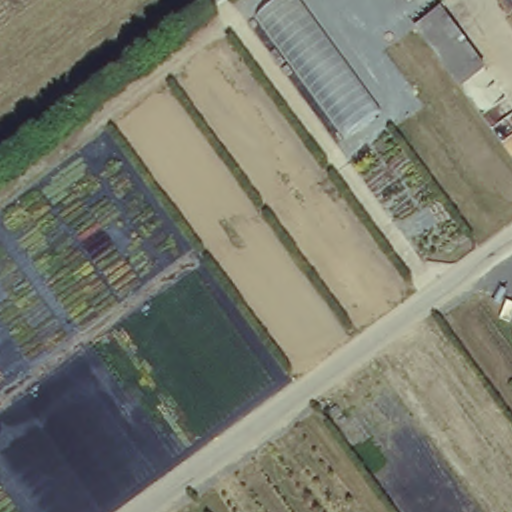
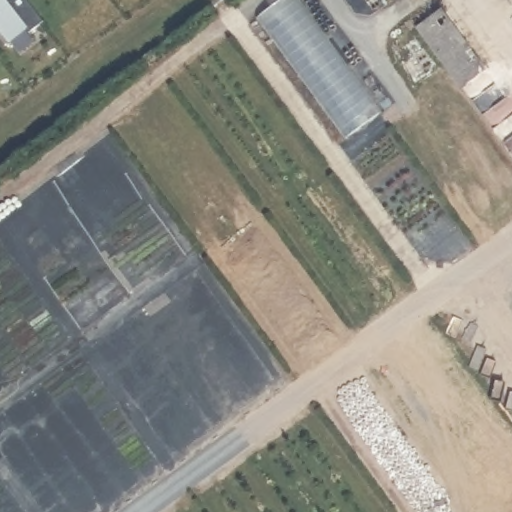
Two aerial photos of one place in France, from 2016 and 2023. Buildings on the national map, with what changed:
new [(0,35),(0,36),(0,0),(27,0),(45,24),(13,48),(0,35)]
unchanged [(276,0),(301,0),(379,108),(345,139),(250,17),(276,0)]
unchanged [(442,6),(486,66),(463,83),(418,24),(442,6)]
demolished [(489,133),(512,119),(512,161),(489,133)]

